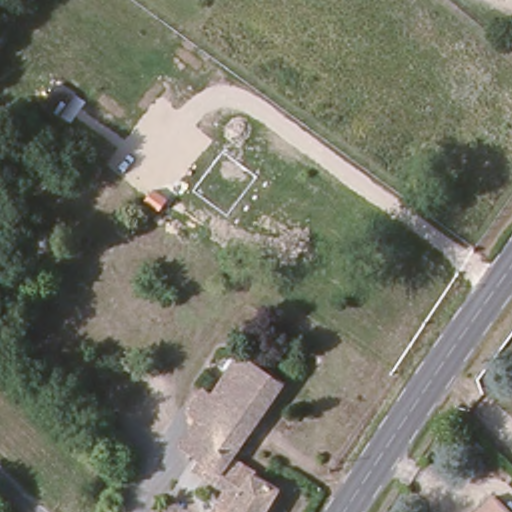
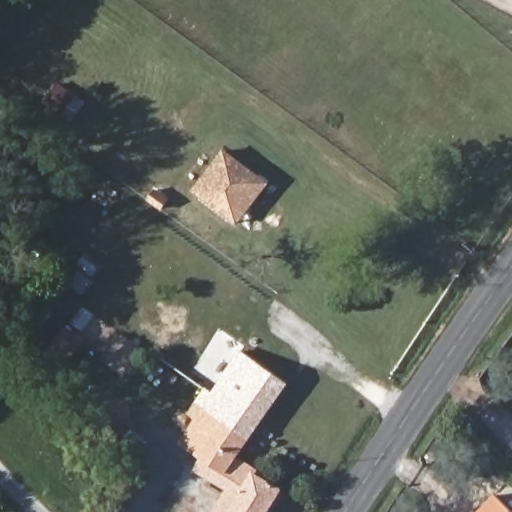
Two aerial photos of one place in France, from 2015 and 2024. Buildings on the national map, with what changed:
new [(223,148),(269,182),(237,225),(190,191),(223,148)]
demolished [(300,289),(289,282),(324,234),(334,241),(300,289)]
unchanged [(224,508),(234,494),(219,483),(222,477),(181,449),(199,424),(201,422),(193,408),(208,389),(208,388),(217,395),(247,352),(254,357),(291,384),(275,407),(269,416),(262,425),(230,471),(252,488),(259,479),(280,494),(269,512),(221,512),(224,508)]
unchanged [(496,494),(512,508),(512,512),(480,512),(496,494)]

